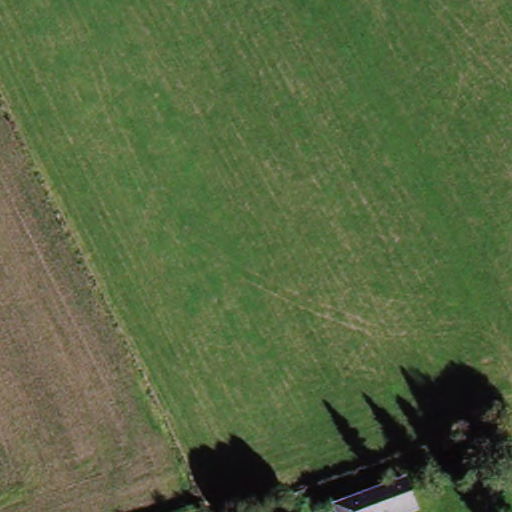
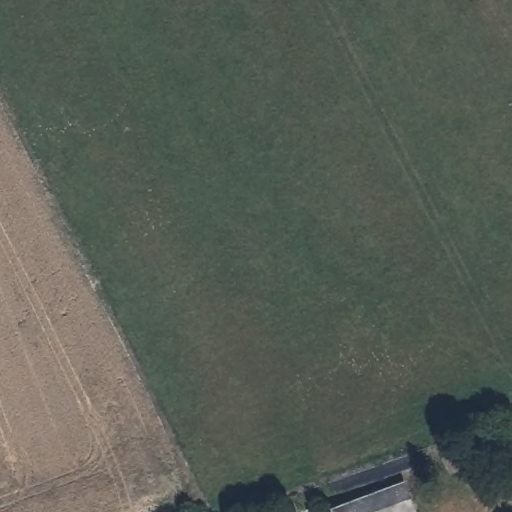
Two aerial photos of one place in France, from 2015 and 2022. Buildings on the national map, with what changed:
unchanged [(405,483),(416,512),(325,512),(405,483)]

